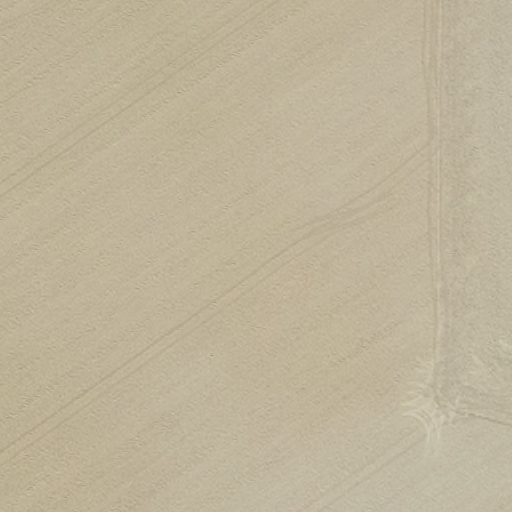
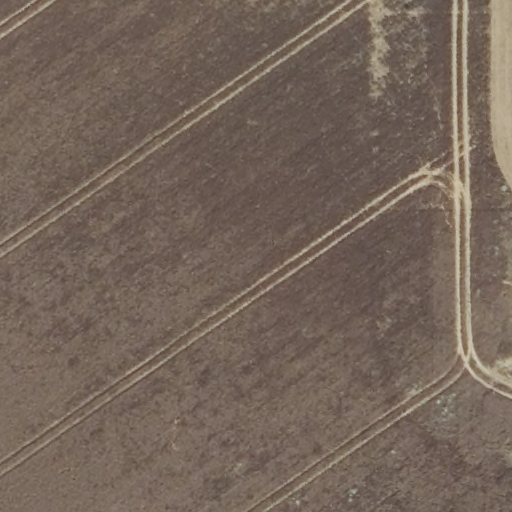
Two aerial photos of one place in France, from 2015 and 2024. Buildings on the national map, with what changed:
[]

